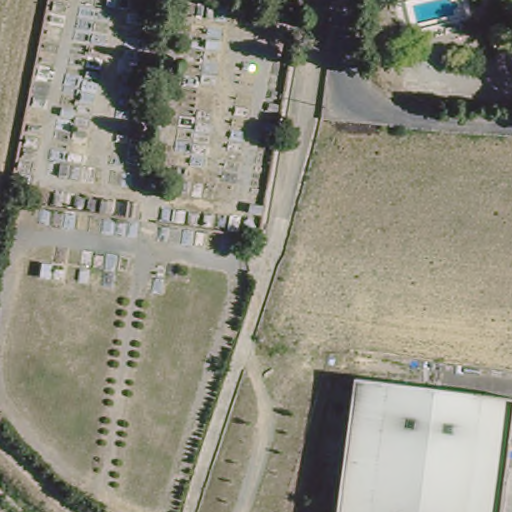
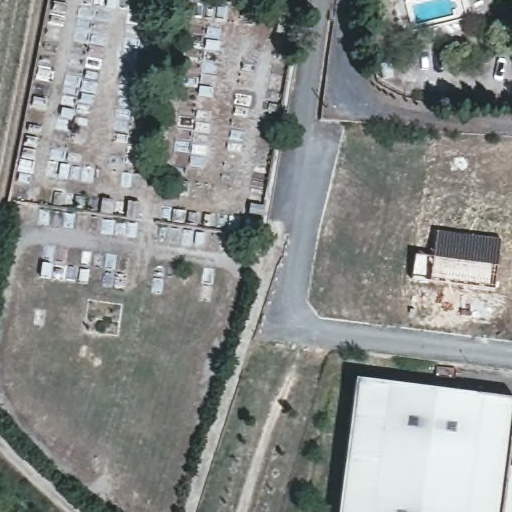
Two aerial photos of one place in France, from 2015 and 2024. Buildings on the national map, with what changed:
new [(431,256),(436,229),(500,237),(492,284),(428,276),(431,256)]
unchanged [(512,420),(499,512),(335,512),(354,376),(512,398),(512,420)]

